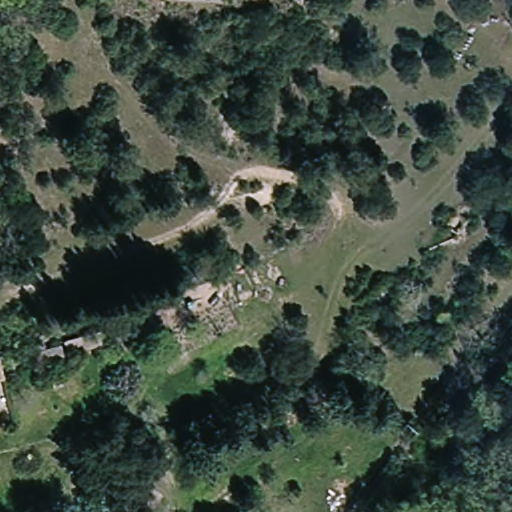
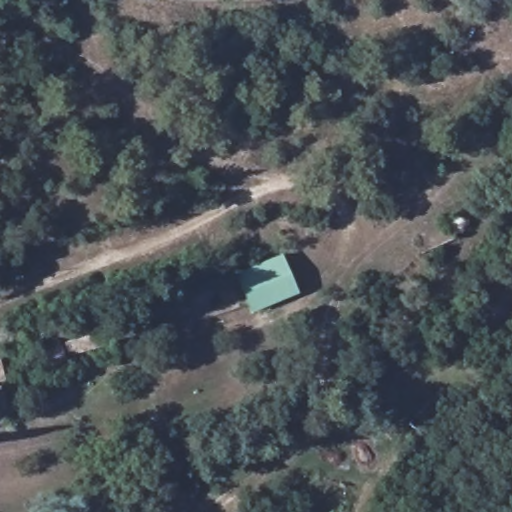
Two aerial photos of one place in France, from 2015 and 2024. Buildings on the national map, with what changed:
new [(253,313),(236,274),(281,254),(298,293),(253,313)]
unchanged [(165,329),(135,335),(133,321),(161,314),(165,329)]
unchanged [(122,343),(84,354),(80,341),(119,331),(122,343)]
unchanged [(78,360),(53,366),(51,354),(73,348),(78,360)]
new [(7,381),(0,383),(0,360),(0,359),(7,381)]
demolished [(0,390),(0,377),(4,376),(7,388),(0,390)]

